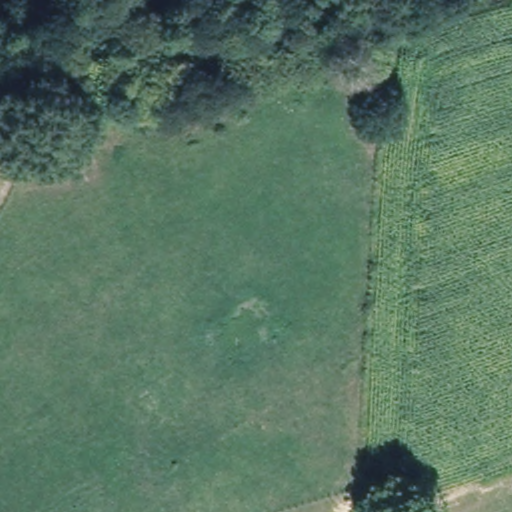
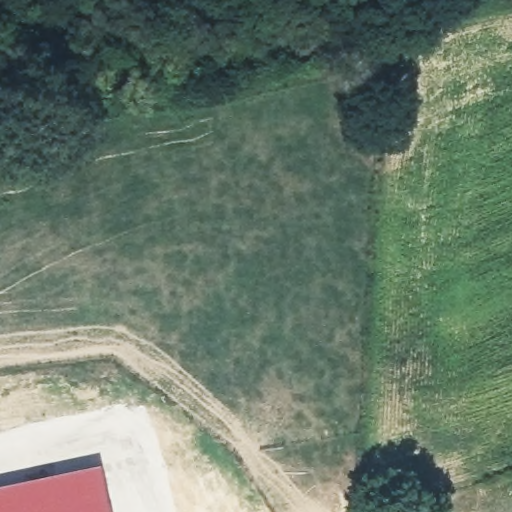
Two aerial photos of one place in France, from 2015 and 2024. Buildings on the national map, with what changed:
new [(102,464),(113,512),(0,512),(0,486),(102,464)]

